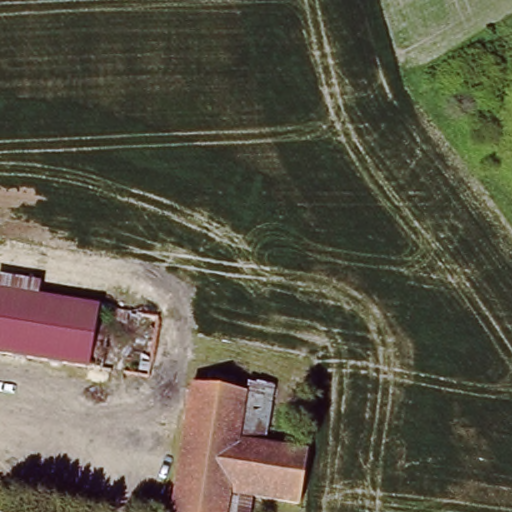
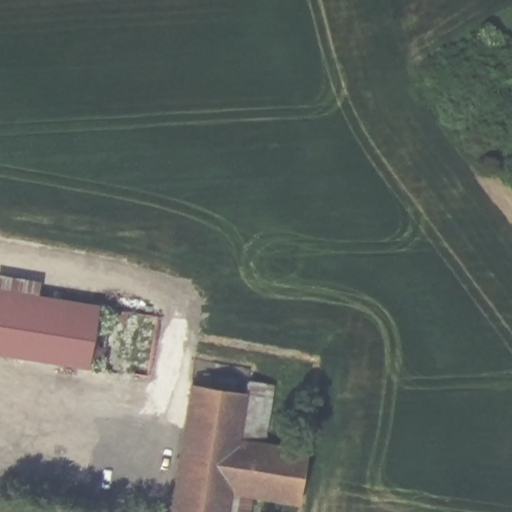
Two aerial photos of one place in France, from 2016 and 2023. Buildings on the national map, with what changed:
unchanged [(86,305),(76,365),(75,368),(0,356),(0,289),(86,302),(86,305)]
unchanged [(100,307),(144,315),(142,326),(98,320),(90,355),(100,357),(97,369),(76,365),(86,305),(100,307)]
unchanged [(154,353),(150,385),(124,382),(125,373),(140,374),(142,351),(154,353)]
unchanged [(279,386),(269,444),(241,440),(247,392),(249,381),(279,386)]
unchanged [(241,440),(269,444),(310,450),(301,508),(259,501),(234,497),(232,512),(174,512),(192,384),(247,392),(241,440)]
unchanged [(256,512),(232,512),(234,497),(259,501),(256,512)]

